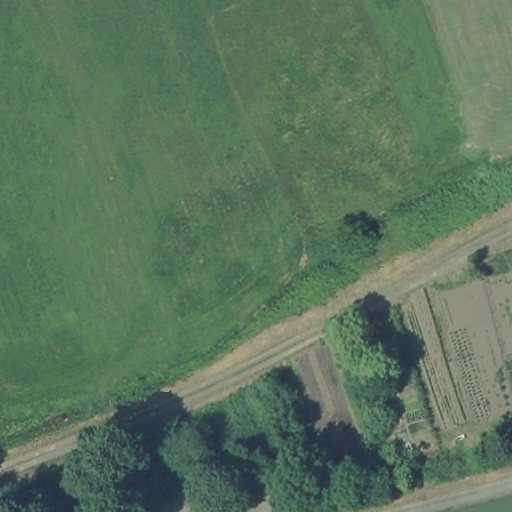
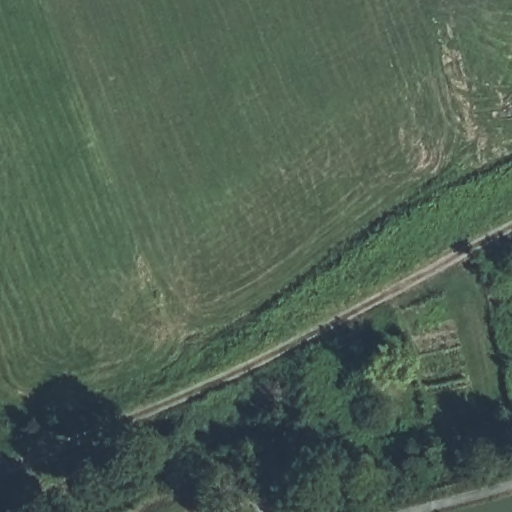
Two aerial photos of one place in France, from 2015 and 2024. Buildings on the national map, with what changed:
unchanged [(512,398),(512,423),(506,400),(512,398)]
unchanged [(498,453),(473,459),(469,440),(495,434),(498,453)]

